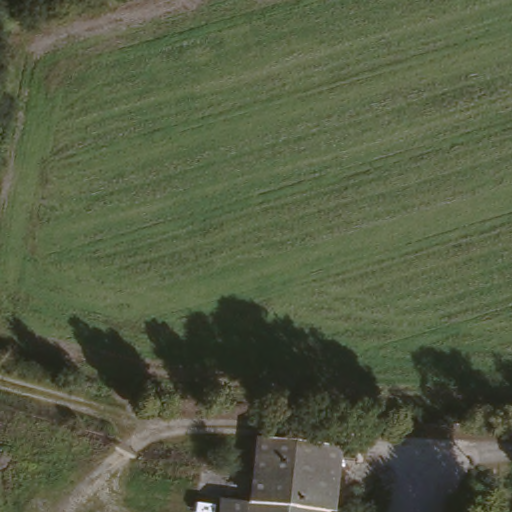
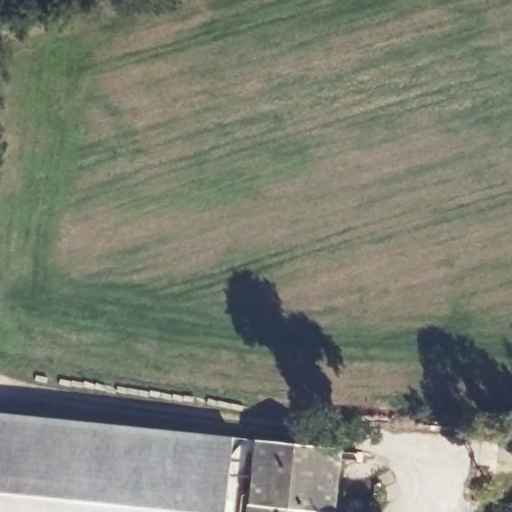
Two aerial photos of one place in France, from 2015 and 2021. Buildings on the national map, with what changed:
new [(0,412),(235,436),(227,512),(0,512),(0,412)]
unchanged [(255,441),(339,448),(333,512),(249,507),(255,441)]
demolished [(217,504),(244,506),(244,512),(217,512),(217,504)]
unchanged [(249,507),(333,512),(249,512),(249,507)]

